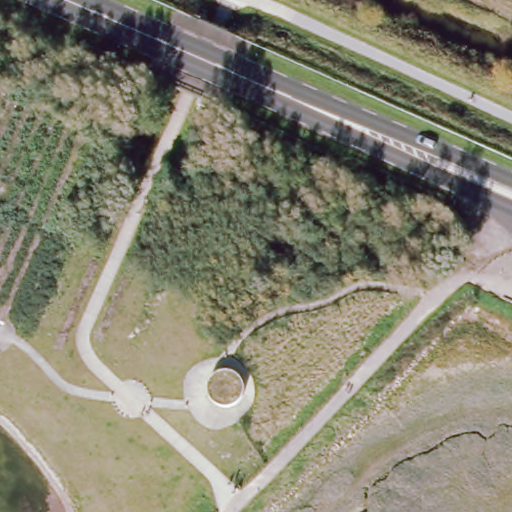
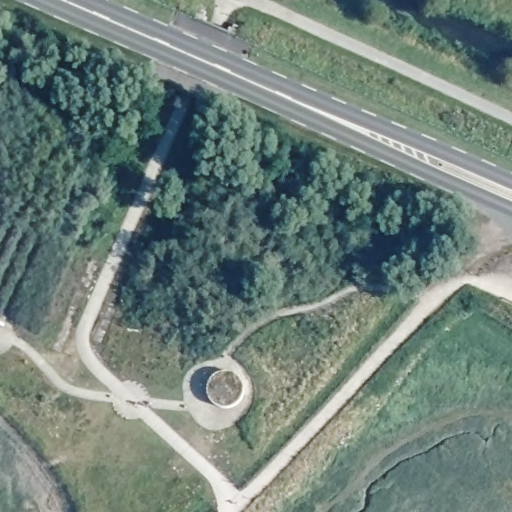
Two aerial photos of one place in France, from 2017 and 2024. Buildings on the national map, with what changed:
unchanged [(209,382),(214,375),(223,371),(234,372),(242,380),(245,391),(241,401),(234,406),(224,407),(215,404),(208,398),(207,391),(209,382)]

